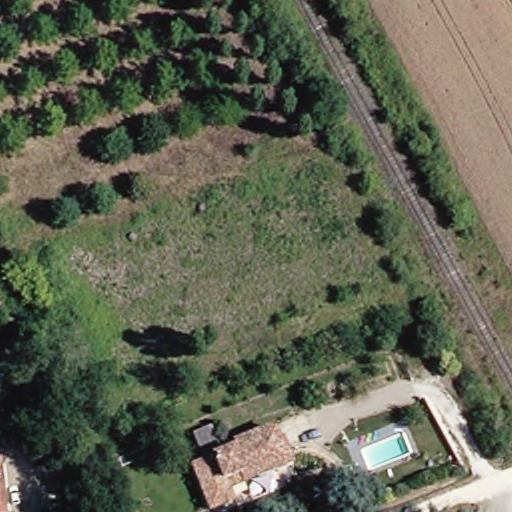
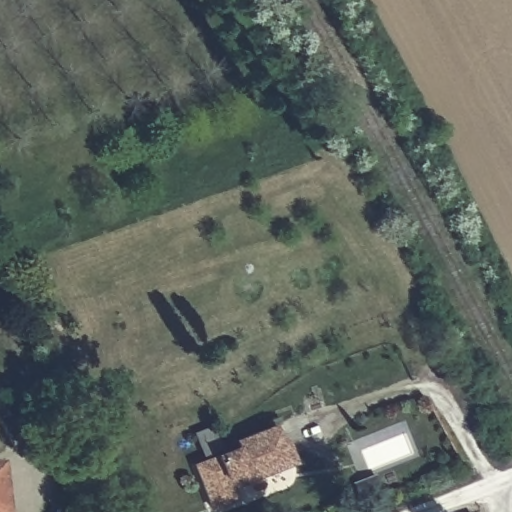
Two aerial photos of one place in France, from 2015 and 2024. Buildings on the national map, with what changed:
unchanged [(232,461),(212,467),(204,446),(224,438),(232,461)]
unchanged [(244,512),(218,512),(205,477),(250,460),(249,456),(247,452),(284,438),(291,452),(293,452),(295,451),(303,471),(305,476),(289,481),(258,493),(241,500),(246,512),(244,512)]
unchanged [(0,512),(0,465),(5,465),(11,512),(0,512)]

